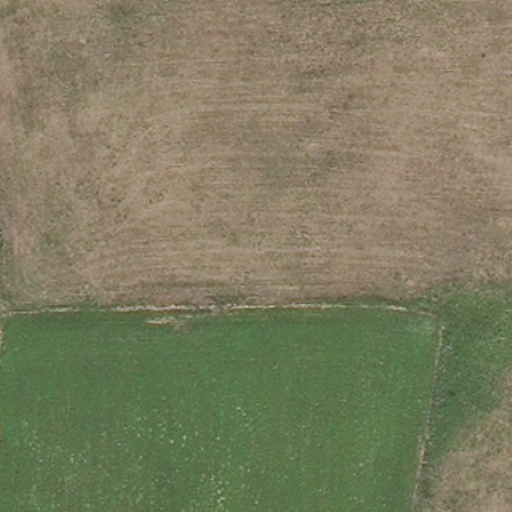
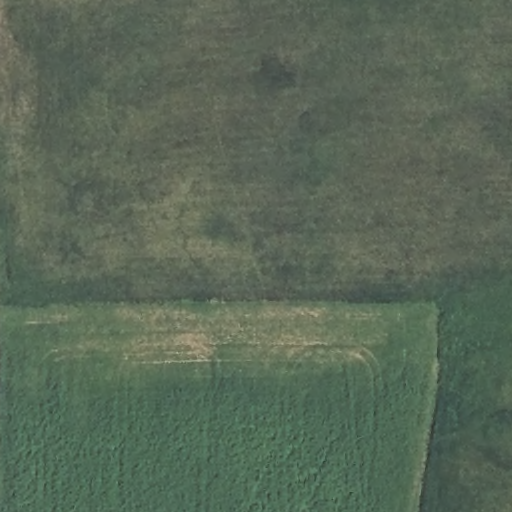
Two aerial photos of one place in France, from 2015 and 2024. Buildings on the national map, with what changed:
[]

